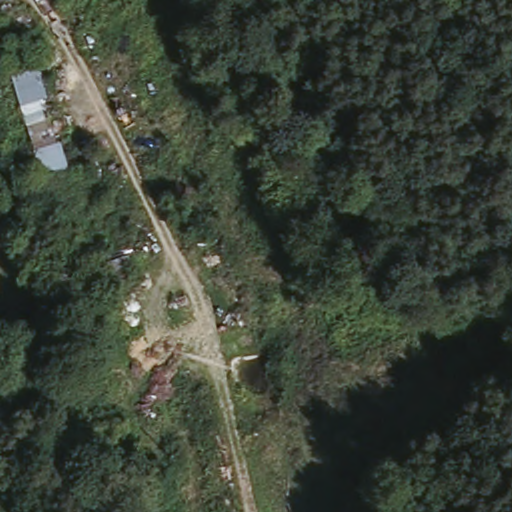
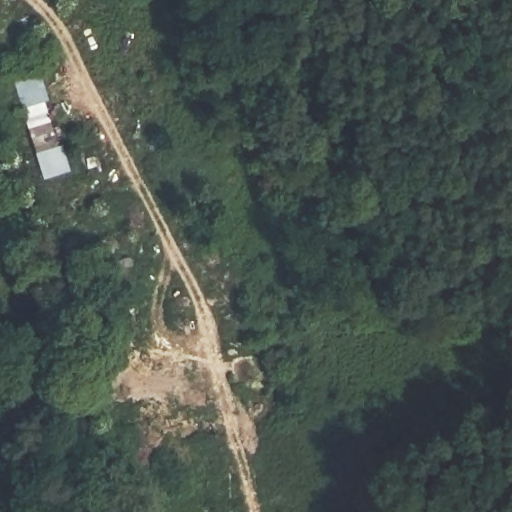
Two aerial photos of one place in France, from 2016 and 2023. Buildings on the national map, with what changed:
unchanged [(37,77),(45,106),(40,108),(53,153),(59,151),(68,175),(43,184),(9,87),(37,77)]

